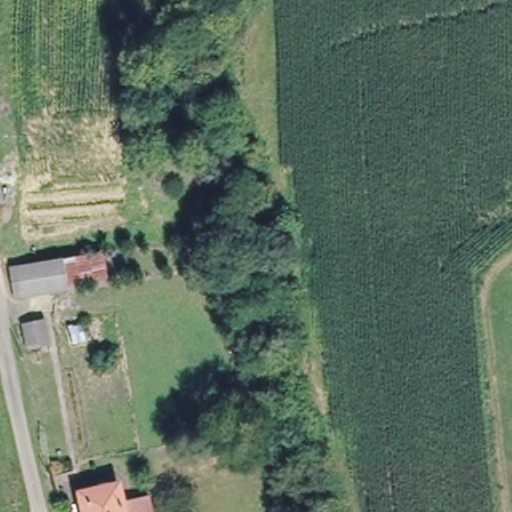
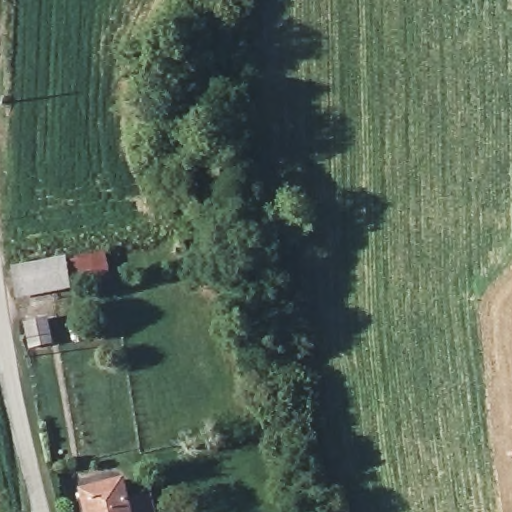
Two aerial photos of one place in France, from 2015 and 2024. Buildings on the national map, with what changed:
unchanged [(6,260),(14,260),(64,257),(69,287),(18,291),(11,292),(6,260)]
unchanged [(42,320),(47,349),(27,352),(21,323),(42,320)]
unchanged [(77,489),(116,482),(120,496),(140,493),(143,512),(82,512),(77,489)]

